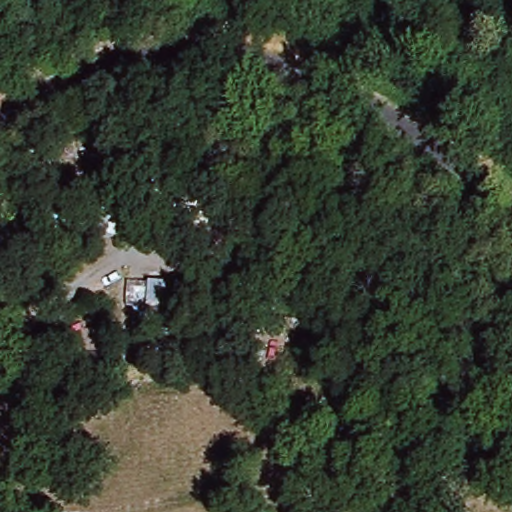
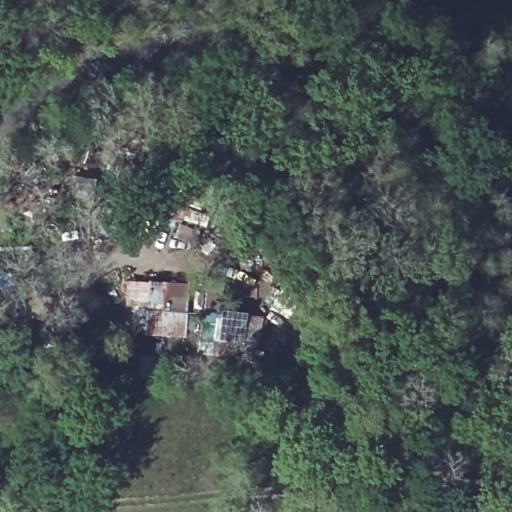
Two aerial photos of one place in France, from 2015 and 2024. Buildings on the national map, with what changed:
unchanged [(211,217),(204,234),(161,215),(166,199),(211,217)]
new [(124,280),(187,283),(185,338),(121,334),(124,280)]

